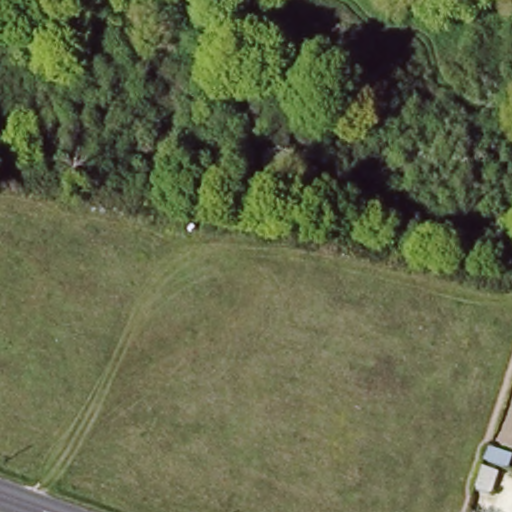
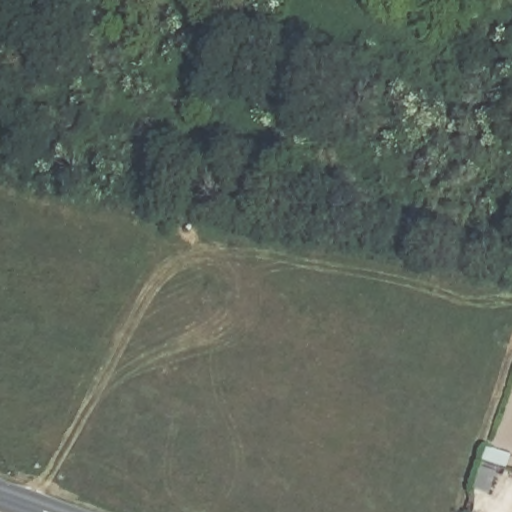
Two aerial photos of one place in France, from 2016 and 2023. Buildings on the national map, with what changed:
unchanged [(497,471),(490,494),(473,489),(482,466),(497,471)]

